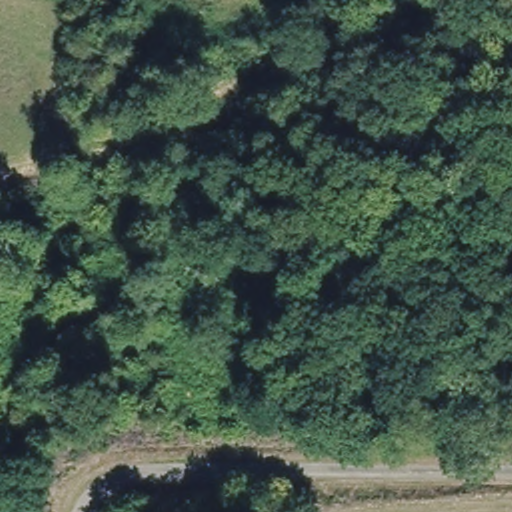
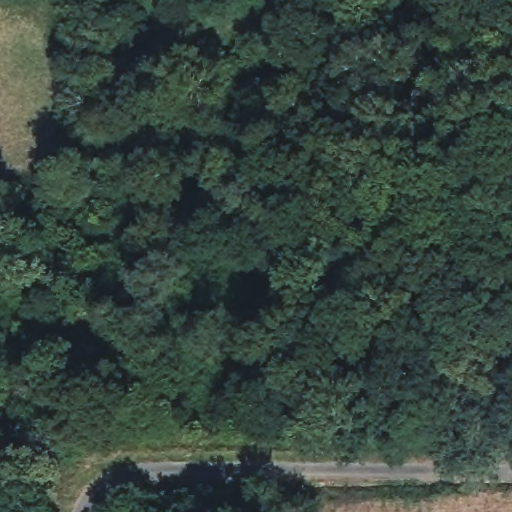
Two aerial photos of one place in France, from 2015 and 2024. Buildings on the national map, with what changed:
[]

